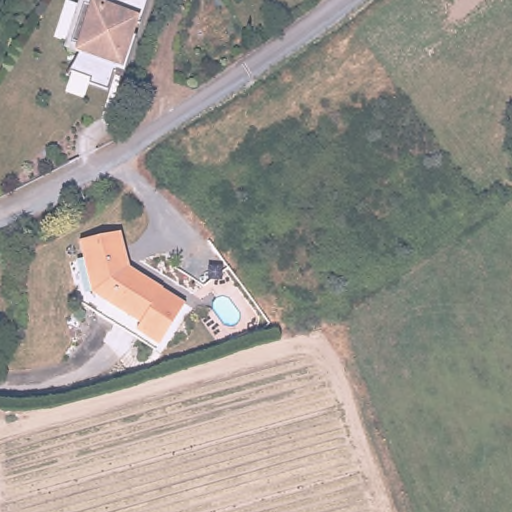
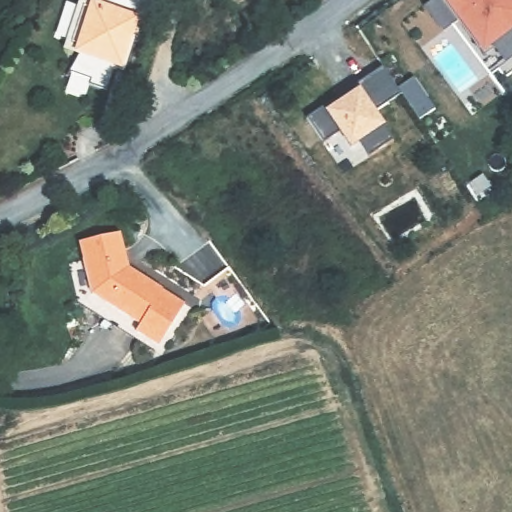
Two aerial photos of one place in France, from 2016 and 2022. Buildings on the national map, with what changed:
unchanged [(131,22),(127,34),(136,36),(122,76),(112,74),(106,92),(87,86),(88,81),(67,74),(72,67),(75,61),(77,57),(79,54),(81,50),(70,46),(53,40),(66,2),(82,8),(93,11),(94,5),(95,1),(95,0),(147,0),(139,25),(131,22)]
new [(512,0),(512,57),(503,63),(492,47),(481,55),(457,19),(442,29),(424,1),(425,0),(512,0)]
new [(322,106),(356,84),(382,66),(400,93),(374,110),(382,124),(392,139),(368,155),(359,142),(350,149),(340,134),(323,144),(306,117),(322,106)]
unchanged [(140,344),(135,341),(139,335),(143,328),(114,309),(91,294),(84,262),(80,245),(121,235),(127,268),(166,293),(165,294),(187,308),(178,324),(161,350),(157,355),(140,344)]
unchanged [(104,325),(76,305),(67,266),(84,262),(91,294),(114,309),(104,325)]

